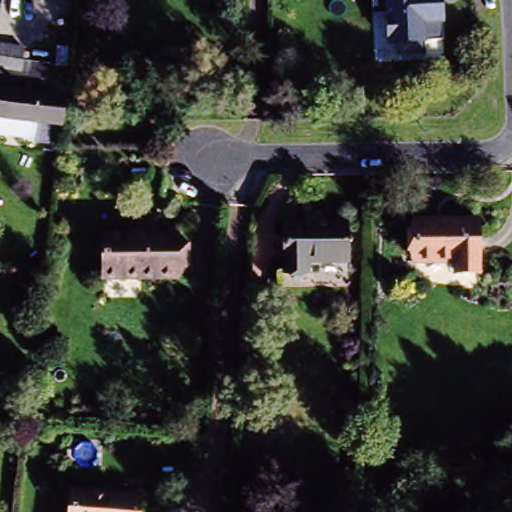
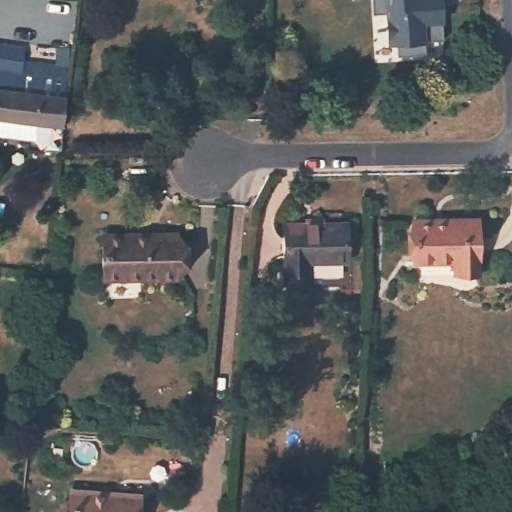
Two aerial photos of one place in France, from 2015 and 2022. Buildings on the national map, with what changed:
unchanged [(396,46),(386,45),(383,10),(374,10),(373,0),(441,0),(443,22),(441,23),(442,40),(425,41),(425,55),(397,56),(396,46)]
unchanged [(25,50),(22,75),(41,77),(63,81),(61,97),(65,97),(61,126),(0,117),(0,46),(25,50)]
unchanged [(415,222),(479,221),(479,273),(456,273),(456,262),(415,262),(415,222)]
unchanged [(283,227),(348,227),(346,266),(306,265),(306,275),(281,274),(283,227)]
unchanged [(181,237),(180,281),(104,281),(104,238),(181,237)]
unchanged [(71,489),(138,495),(136,512),(69,512),(71,489)]

